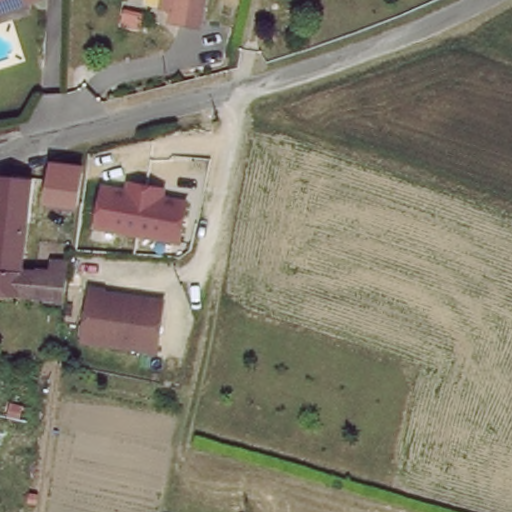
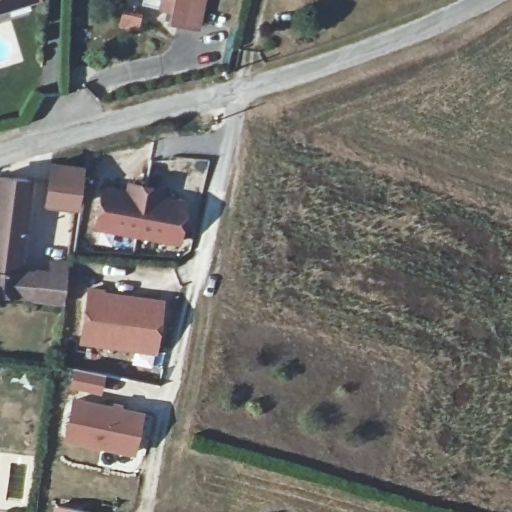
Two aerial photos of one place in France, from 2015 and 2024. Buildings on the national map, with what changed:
unchanged [(0,9),(0,0),(27,0),(0,9)]
unchanged [(196,26),(168,21),(170,10),(159,8),(160,0),(201,0),(196,26)]
unchanged [(81,203),(42,197),(46,161),(86,162),(81,203)]
unchanged [(125,190),(125,180),(164,187),(162,195),(189,201),(180,246),(93,231),(102,186),(125,190)]
unchanged [(22,272),(0,271),(0,186),(26,186),(22,272)]
unchanged [(61,261),(83,263),(78,305),(0,299),(0,271),(22,272),(59,276),(61,261)]
unchanged [(142,348),(121,346),(83,340),(89,288),(105,291),(105,293),(130,296),(162,301),(158,334),(156,350),(142,348)]
new [(111,375),(106,402),(150,412),(139,460),(66,445),(81,370),(111,375)]
new [(56,512),(58,502),(97,512),(56,512)]

